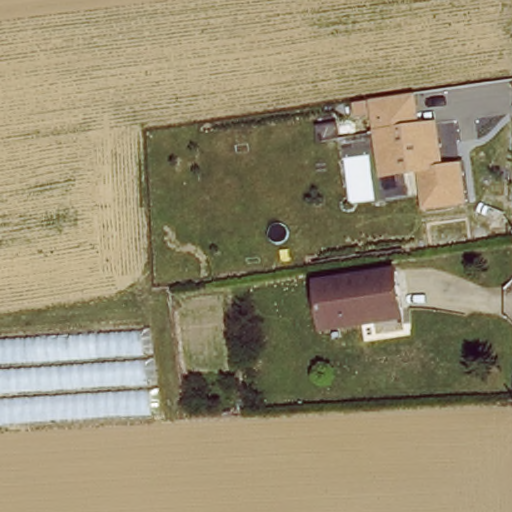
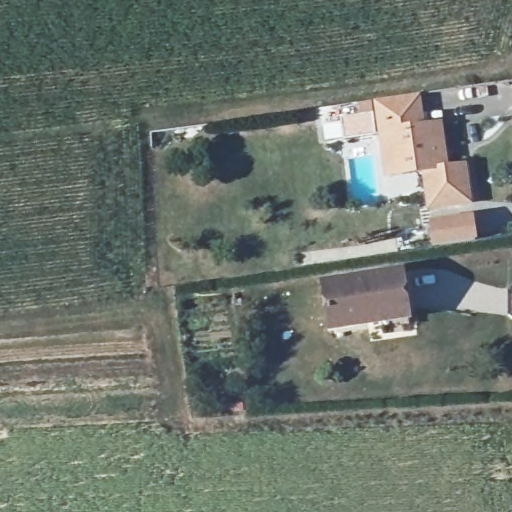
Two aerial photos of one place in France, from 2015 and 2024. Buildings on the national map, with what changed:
unchanged [(387,164),(379,106),(420,100),(425,131),(442,129),(448,172),(467,170),(472,208),(432,213),(427,177),(404,180),(389,182),(387,164)]
unchanged [(380,324),(329,330),(322,285),(399,275),(405,309),(407,321),(380,324)]
demolished [(0,338),(148,329),(167,422),(0,430),(0,338)]
new [(158,416),(2,425),(0,403),(156,393),(158,416)]

